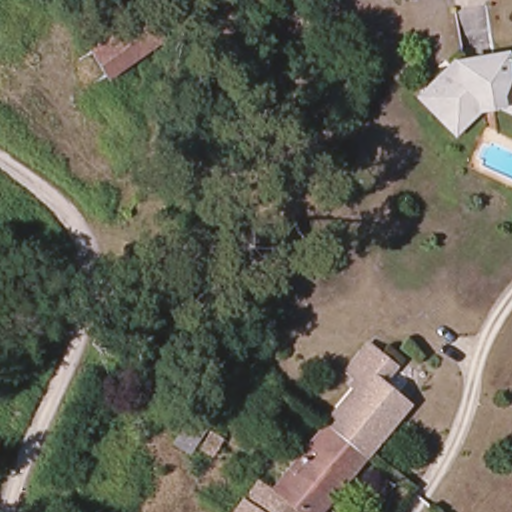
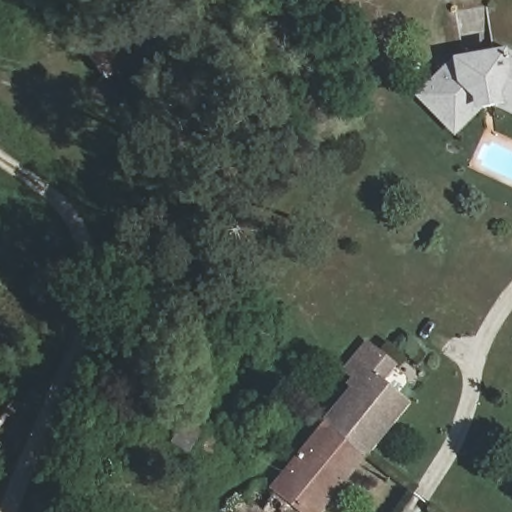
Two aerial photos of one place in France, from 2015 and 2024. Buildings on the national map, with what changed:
unchanged [(154,43),(114,68),(95,39),(135,13),(154,43)]
unchanged [(497,100),(478,102),(452,123),(437,105),(425,89),(461,59),(506,54),(512,58),(512,109),(497,100)]
unchanged [(355,381),(342,369),(366,341),(396,366),(385,381),(411,403),(368,455),(348,439),(345,437),(322,419),(355,381)]
unchanged [(211,456),(194,443),(185,453),(169,443),(189,417),(221,436),(211,456)]
unchanged [(345,437),(348,439),(368,455),(321,512),(299,512),(297,511),(297,512),(233,512),(256,476),(268,484),(270,483),(322,419),(345,437)]

